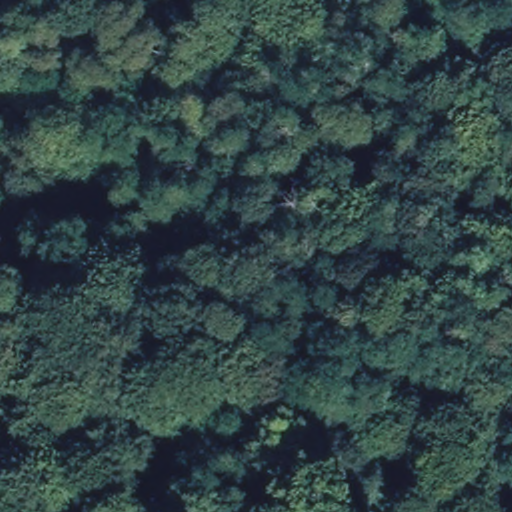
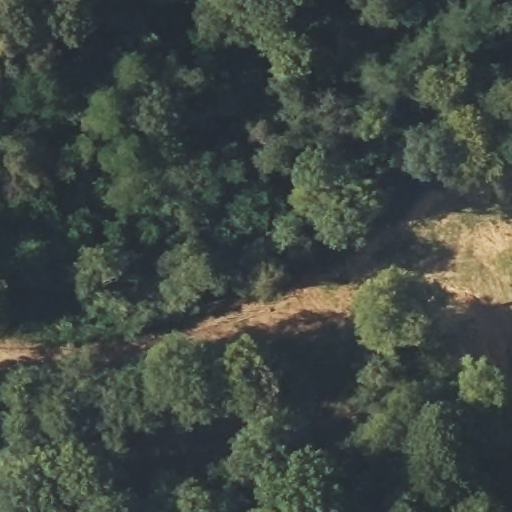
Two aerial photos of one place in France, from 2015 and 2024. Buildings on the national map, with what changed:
unchanged [(405,492),(405,512),(375,512),(376,491),(405,492)]

